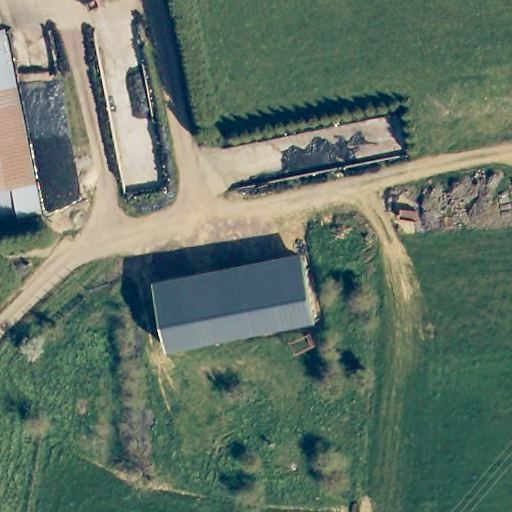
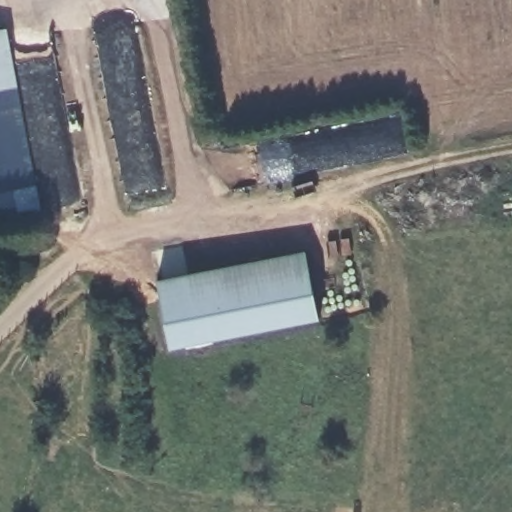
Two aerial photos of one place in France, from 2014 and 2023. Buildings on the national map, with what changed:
unchanged [(19,92),(0,96),(0,36),(9,34),(19,92)]
unchanged [(40,215),(0,222),(0,96),(19,92),(40,215)]
unchanged [(306,251),(321,321),(172,348),(158,279),(306,251)]

